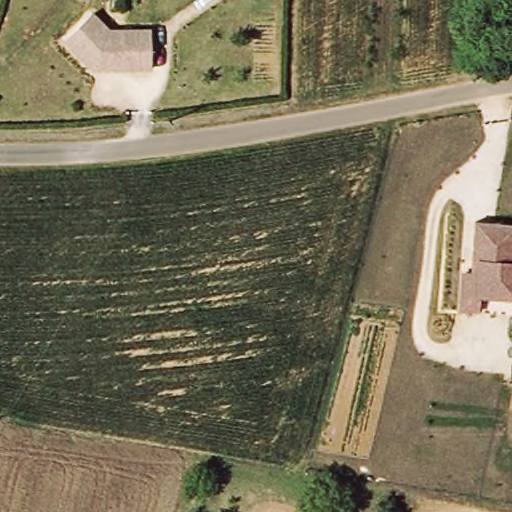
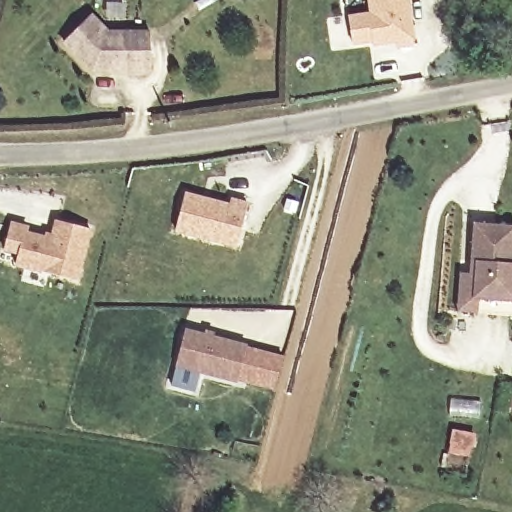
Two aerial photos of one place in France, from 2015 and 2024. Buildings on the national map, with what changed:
new [(376,39),(356,42),(353,16),(375,13),(374,0),(411,0),(418,43),(401,45),(400,39),(385,42),(377,43),(376,39)]
unchanged [(146,72),(89,71),(61,43),(87,16),(104,32),(147,34),(146,72)]
new [(225,239),(178,228),(187,191),(231,201),(233,196),(250,199),(243,226),(240,242),(225,239)]
new [(15,223),(28,226),(27,232),(56,239),(60,219),(94,227),(82,279),(20,264),(23,252),(8,249),(15,223)]
unchanged [(456,314),(460,259),(470,260),(473,222),(512,225),(512,317),(456,314)]
new [(188,328),(249,343),(248,346),(240,378),(240,380),(178,364),(188,328)]
new [(248,346),(286,355),(277,387),(240,378),(248,346)]

